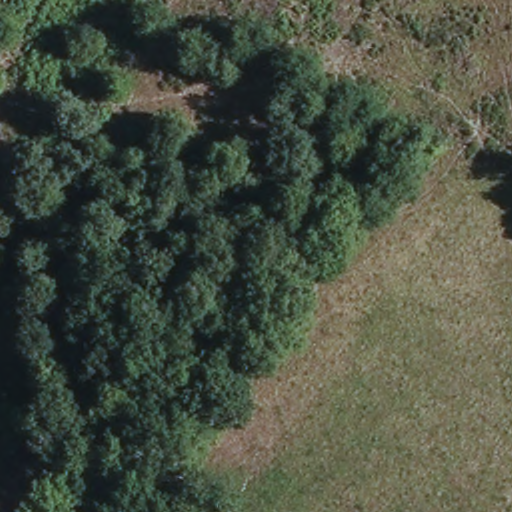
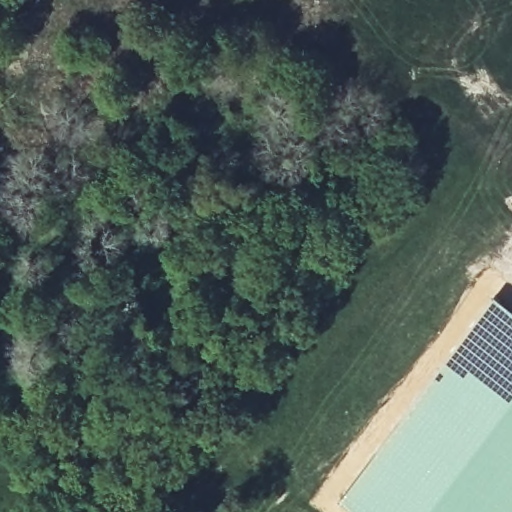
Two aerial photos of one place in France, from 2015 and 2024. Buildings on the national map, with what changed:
new [(412,406),(447,357),(493,296),(512,309),(512,512),(356,512),(338,498),(364,465),(412,406)]

